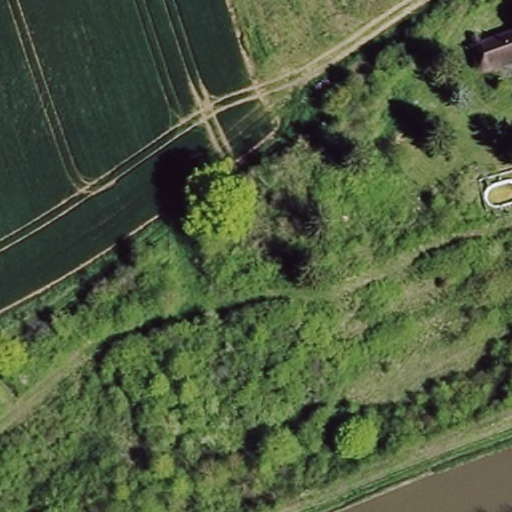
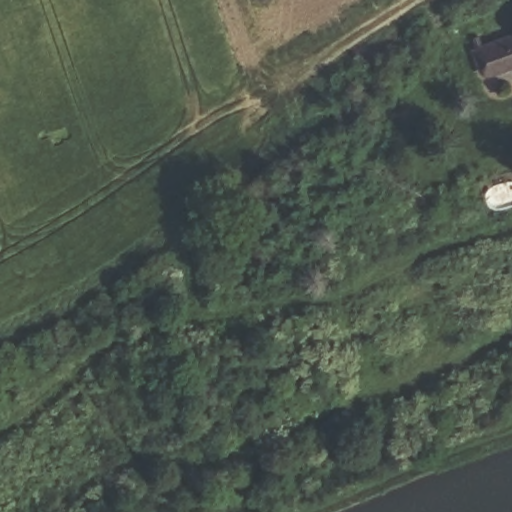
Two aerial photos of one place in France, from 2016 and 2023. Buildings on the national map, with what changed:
unchanged [(512,25),(512,62),(482,71),(471,35),(512,25)]

